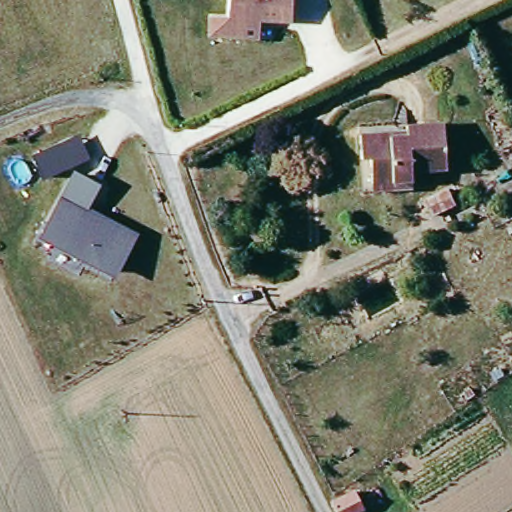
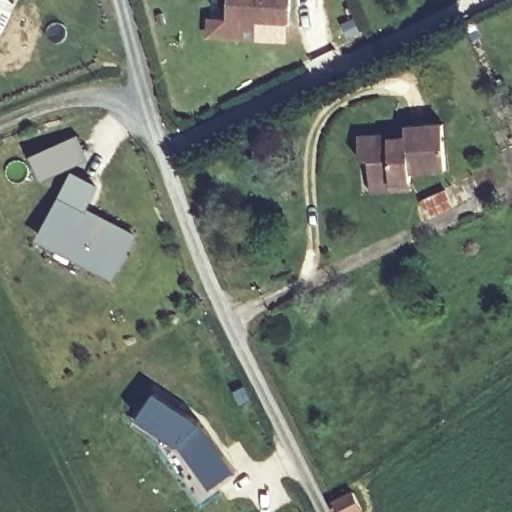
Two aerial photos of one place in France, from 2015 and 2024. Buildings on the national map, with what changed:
unchanged [(289,0),(289,22),(258,22),(258,39),(226,38),(208,38),(208,19),(226,20),(227,0),(289,0)]
unchanged [(373,193),(371,186),(369,164),(359,164),(358,138),(393,134),(393,140),(409,138),(409,130),(444,127),(449,170),(409,174),(410,182),(411,190),(373,193)]
unchanged [(79,134),(89,158),(43,180),(31,156),(79,134)]
unchanged [(424,205),(489,172),(496,185),(431,218),(424,205)]
unchanged [(42,240),(74,181),(95,194),(83,216),(133,243),(113,279),(42,240)]
new [(201,421),(236,470),(211,488),(181,445),(139,417),(156,392),(201,421)]
unchanged [(356,512),(342,512),(334,500),(352,488),(364,506),(356,512)]

